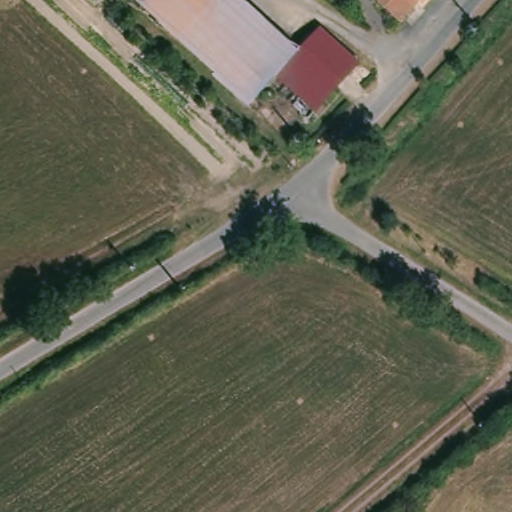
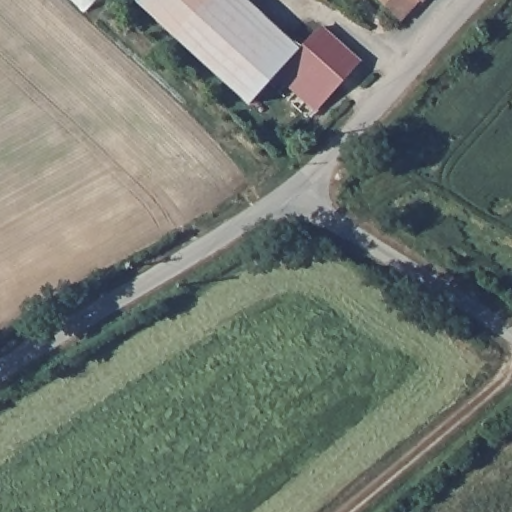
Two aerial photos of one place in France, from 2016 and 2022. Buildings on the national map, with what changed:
unchanged [(270,74),(263,81),(249,96),(245,101),(136,0),(244,0),(295,47),(270,74)]
unchanged [(383,0),(416,0),(403,15),(383,0)]
unchanged [(352,59),(304,108),(270,74),(295,47),(316,24),(352,59)]

